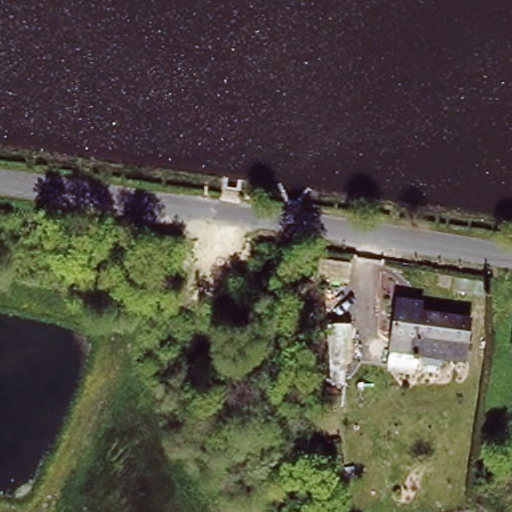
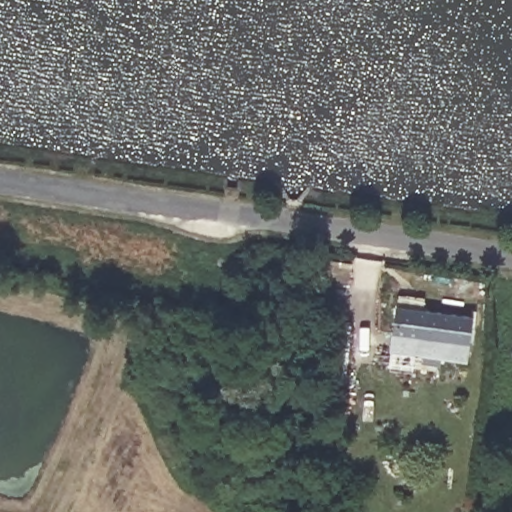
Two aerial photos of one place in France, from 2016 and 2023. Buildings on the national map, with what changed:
unchanged [(474,301),(467,361),(391,354),(399,289),(474,301)]
unchanged [(511,355),(512,342),(512,356),(511,355)]

